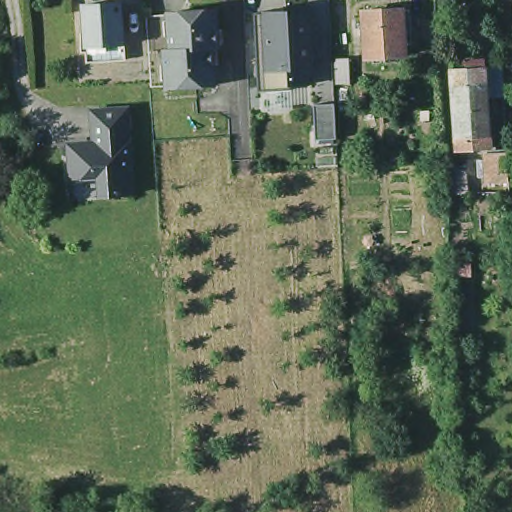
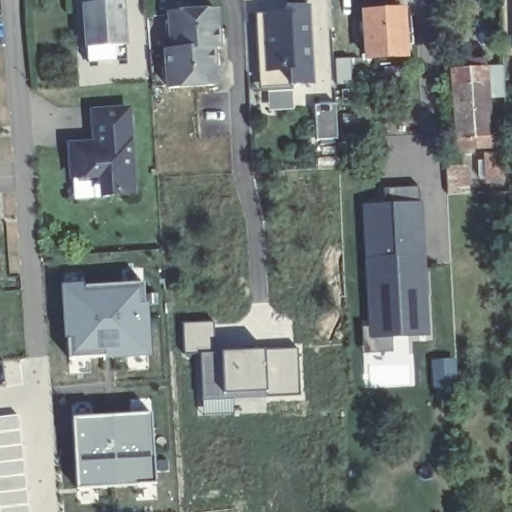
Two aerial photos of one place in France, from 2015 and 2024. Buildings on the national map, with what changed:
unchanged [(121,0),(123,39),(124,53),(86,56),(85,41),(83,0),(121,0)]
unchanged [(339,21),(338,0),(351,0),(352,20),(339,21)]
unchanged [(292,85),(293,90),(268,91),(259,91),(259,71),(256,13),(287,12),(287,7),(309,6),(311,47),(311,57),(313,84),(292,85)]
unchanged [(367,54),(366,7),(376,7),(406,6),(408,52),(378,54),(367,54)]
unchanged [(215,9),(216,29),(218,47),(211,47),(213,64),(214,84),(167,87),(164,49),(171,49),(168,12),(215,9)]
unchanged [(489,148),(510,147),(512,177),(451,181),(444,64),(484,62),(489,148)]
unchanged [(335,104),(336,138),(316,139),(314,105),(335,104)]
unchanged [(126,107),(133,192),(108,194),(107,181),(95,175),(71,176),(69,144),(97,142),(96,136),(94,110),(126,107)]
new [(386,205),(386,190),(421,189),(430,340),(369,342),(363,206),(386,205)]
new [(5,222),(0,222),(0,193),(4,192),(5,222)]
new [(150,281),(156,365),(68,371),(60,287),(150,281)]
new [(300,395),(233,396),(233,414),(203,415),(199,352),(184,352),(183,322),(213,321),(213,351),(298,347),(300,395)]
new [(31,512),(0,512),(0,417),(20,415),(31,512)]
new [(155,487),(78,493),(73,418),(152,416),(155,487)]

